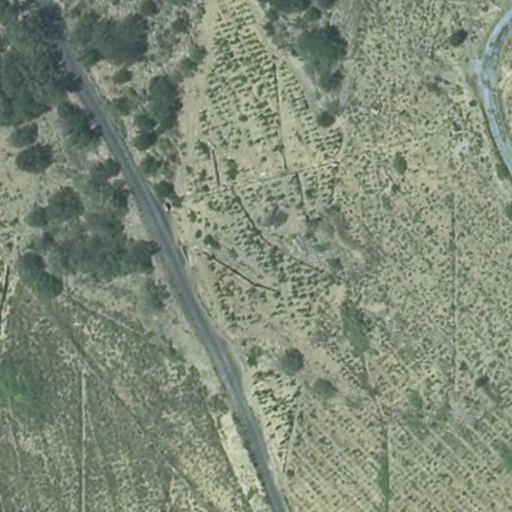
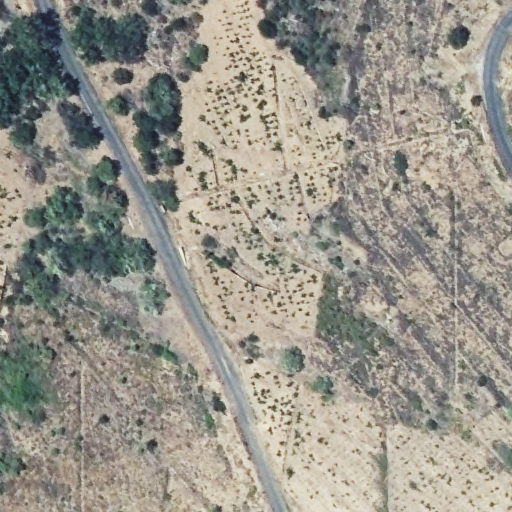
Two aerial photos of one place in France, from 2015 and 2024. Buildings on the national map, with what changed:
unchanged [(460,0),(468,0),(462,5),(460,0)]

